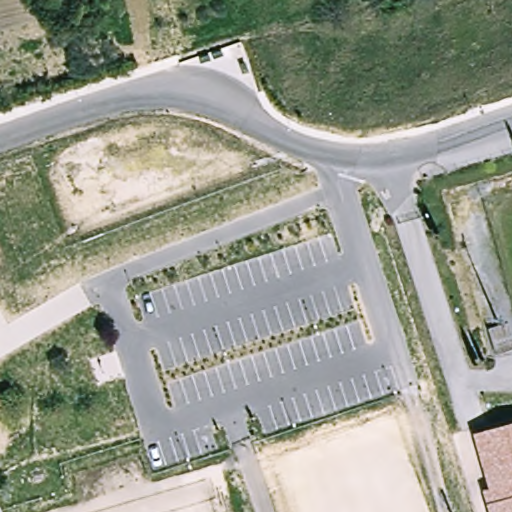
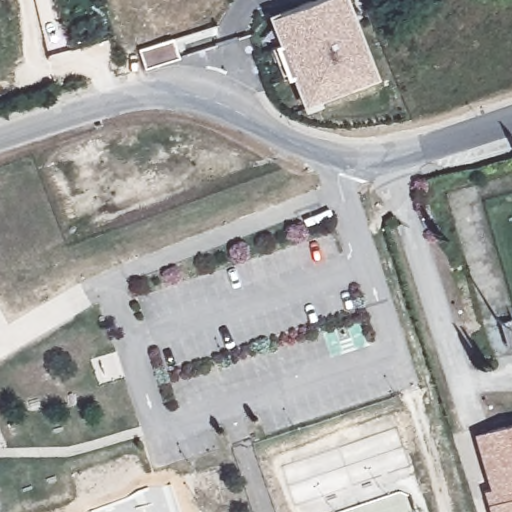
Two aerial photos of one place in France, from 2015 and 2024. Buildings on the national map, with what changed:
new [(306,111),(294,79),(284,83),(272,53),(283,49),(272,21),(283,17),(326,0),(344,0),(353,24),(346,25),(357,55),(364,51),(375,80),(315,104),(317,107),(306,111)]
new [(174,39),(180,59),(144,70),(138,50),(174,39)]
unchanged [(487,492),(494,490),(478,437),(512,428),(512,512),(493,512),(491,506),(487,492)]
demolished [(9,483),(0,474),(0,471),(15,456),(25,467),(9,483)]

